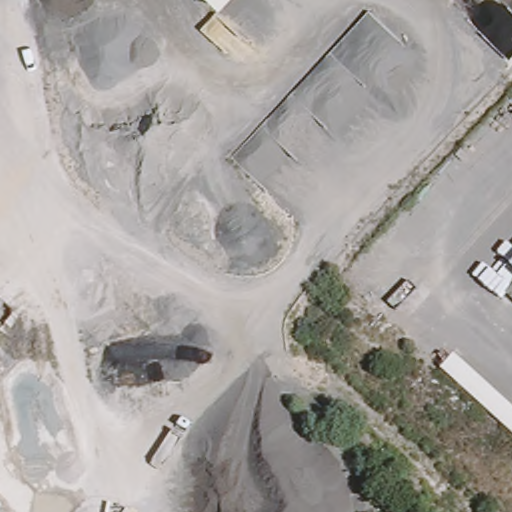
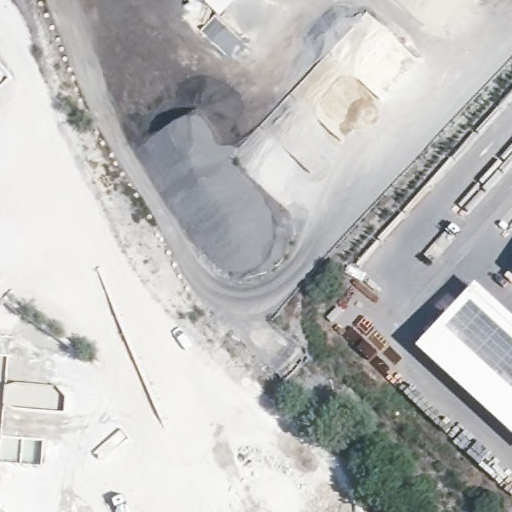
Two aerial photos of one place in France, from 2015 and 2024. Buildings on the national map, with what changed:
unchanged [(210,0),(233,0),(223,11),(210,0)]
new [(474,283),(512,318),(512,436),(416,349),(474,283)]
unchanged [(15,308),(3,321),(0,319),(0,294),(15,308)]
demolished [(455,348),(512,400),(512,435),(436,370),(455,348)]

